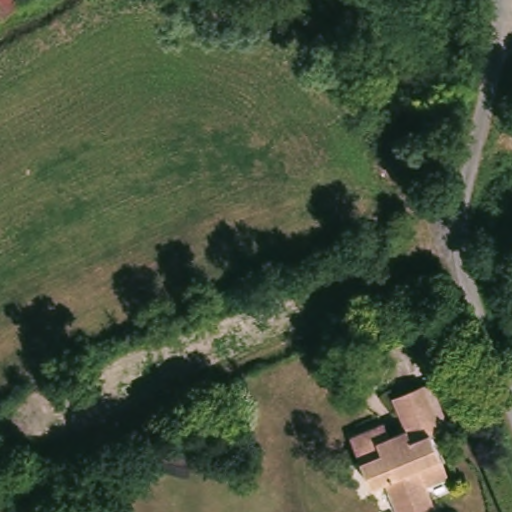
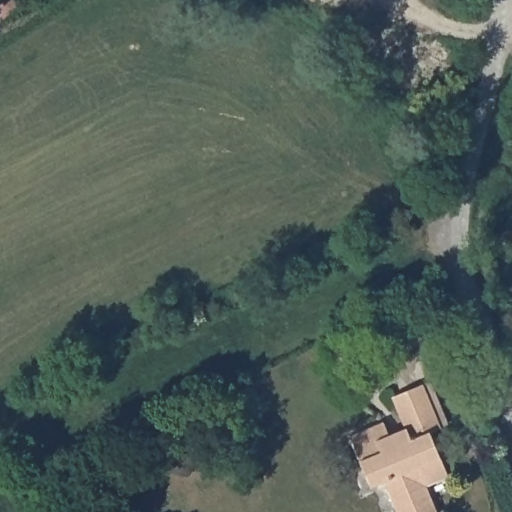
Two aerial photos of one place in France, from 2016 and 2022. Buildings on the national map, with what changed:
unchanged [(8,10),(0,1),(0,0),(20,0),(8,10)]
unchanged [(445,425),(436,430),(456,478),(435,488),(445,512),(406,512),(395,482),(380,488),(357,437),(387,425),(392,436),(408,430),(395,398),(427,384),(445,425)]
unchanged [(161,473),(164,456),(194,462),(190,479),(161,473)]

